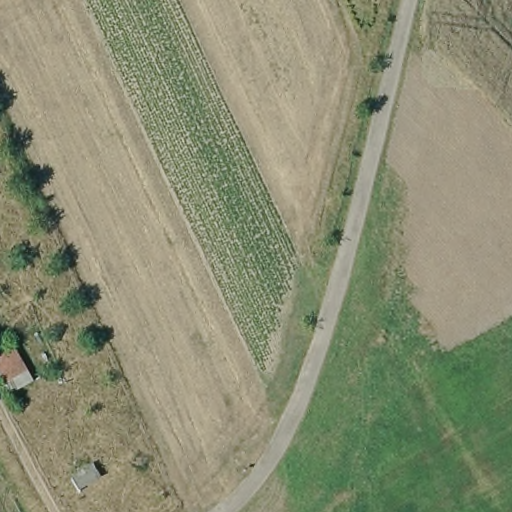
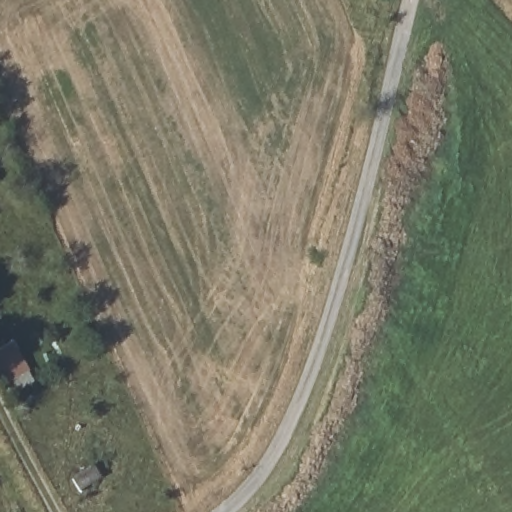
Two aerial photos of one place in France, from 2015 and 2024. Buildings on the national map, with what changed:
unchanged [(31,385),(5,399),(0,391),(0,346),(7,342),(31,385)]

